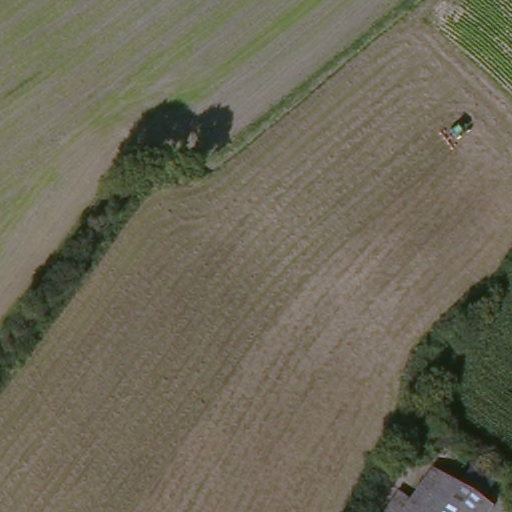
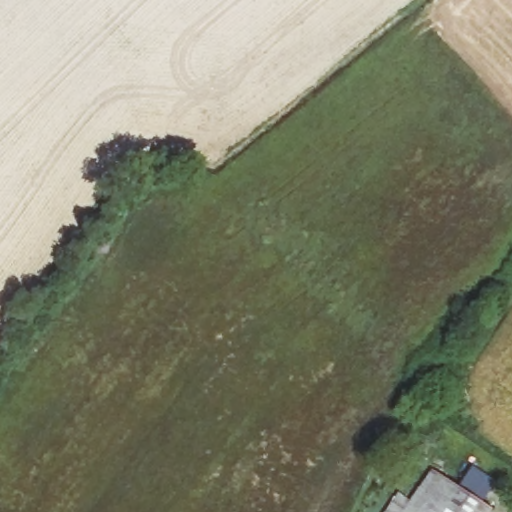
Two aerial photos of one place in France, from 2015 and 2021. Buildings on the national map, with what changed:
unchanged [(501,510),(500,512),(414,512),(440,471),(501,510)]

